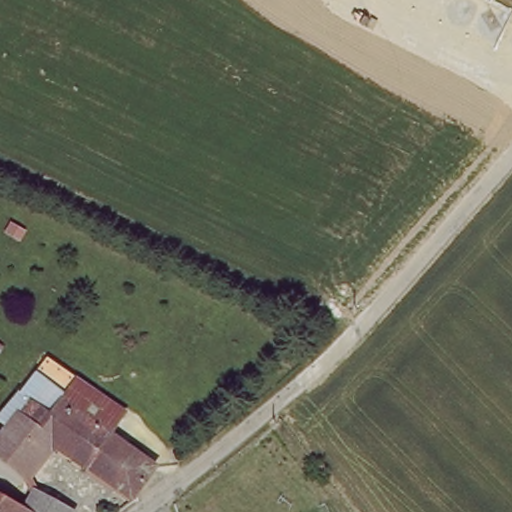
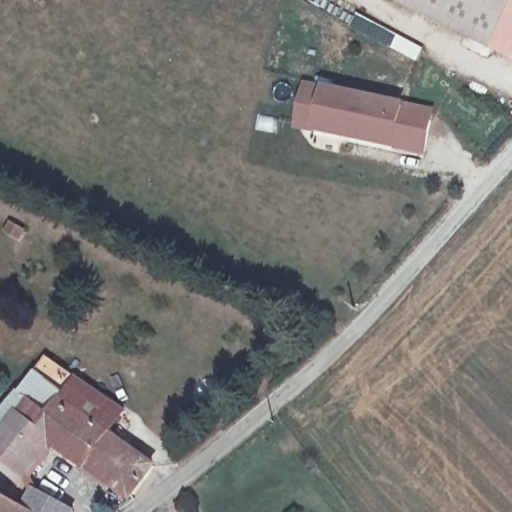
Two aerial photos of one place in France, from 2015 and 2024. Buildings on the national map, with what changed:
new [(495,50),(392,0),(512,0),(512,12),(495,50)]
new [(296,127),(305,81),(324,85),(406,104),(396,149),(314,132),(296,127)]
unchanged [(0,449),(0,439),(22,412),(18,409),(57,362),(61,365),(128,417),(113,435),(87,466),(59,445),(34,474),(0,449)]
unchanged [(113,435),(154,470),(122,497),(87,466),(113,435)]
unchanged [(66,512),(0,512),(0,484),(35,508),(43,496),(66,512)]

